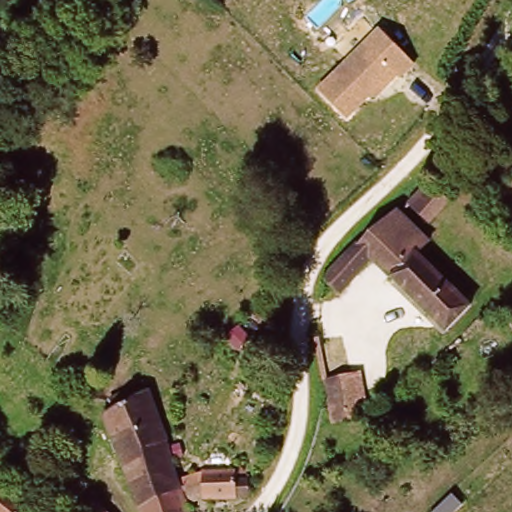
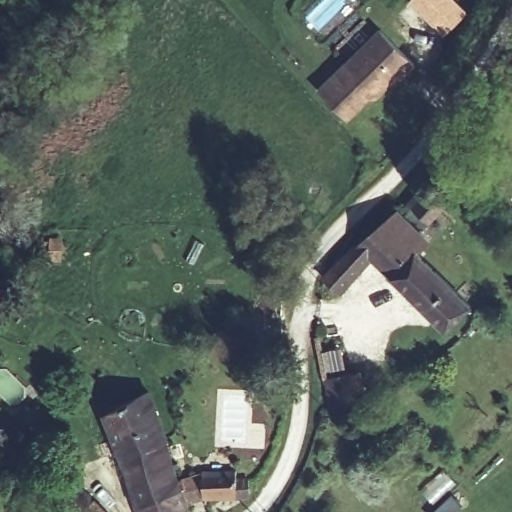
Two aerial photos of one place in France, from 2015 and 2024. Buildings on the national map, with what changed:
new [(469,12),(444,37),(409,1),(410,0),(457,0),(469,12)]
unchanged [(397,76),(385,90),(381,86),(349,120),(320,92),(372,39),(380,30),(415,64),(407,71),(401,78),(397,76)]
unchanged [(412,200),(439,174),(460,194),(435,221),(412,200)]
unchanged [(392,216),(421,247),(415,253),(465,305),(439,330),(375,263),(339,297),(323,281),(392,216)]
unchanged [(362,368),(367,409),(332,417),(326,374),(362,368)]
unchanged [(181,490),(137,504),(105,407),(146,394),(151,408),(181,490)]
unchanged [(7,488),(29,506),(27,510),(30,512),(0,512),(0,453),(22,470),(7,488)]
unchanged [(239,474),(239,481),(247,483),(247,499),(202,496),(185,501),(189,512),(140,512),(137,504),(181,490),(187,488),(185,479),(205,474),(239,474)]
unchanged [(69,512),(58,504),(76,484),(94,499),(106,512),(69,512)]

